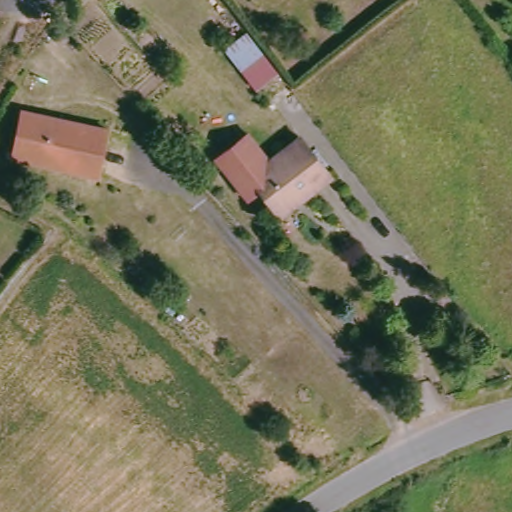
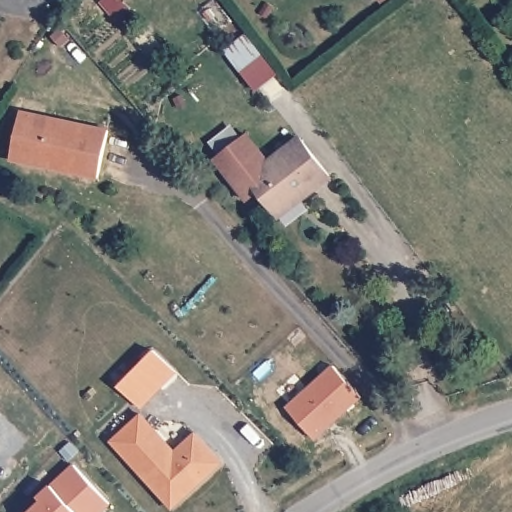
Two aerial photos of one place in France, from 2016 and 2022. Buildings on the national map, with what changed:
unchanged [(397,0),(395,2),(393,0),(397,0)]
unchanged [(221,42),(242,25),(262,50),(240,66),(221,42)]
unchanged [(114,132),(104,177),(17,157),(28,112),(114,132)]
unchanged [(248,175),(262,194),(249,204),(215,162),(250,135),(268,160),(248,175)]
unchanged [(299,136),(330,176),(280,215),(248,175),(299,136)]
new [(119,387),(154,351),(177,372),(142,408),(119,387)]
new [(287,406),(332,366),(362,397),(317,438),(287,406)]
new [(125,457),(155,428),(175,449),(196,431),(224,462),(172,509),(125,457)]
new [(42,500),(40,497),(73,464),(111,504),(103,512),(30,512),(42,500)]

